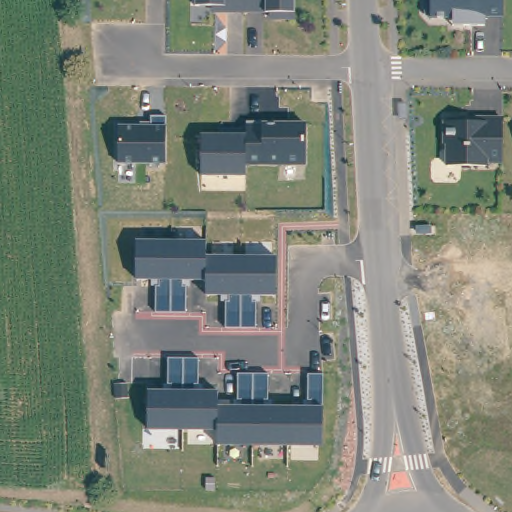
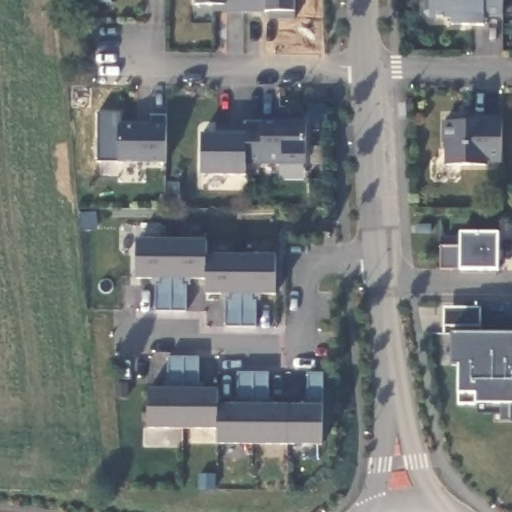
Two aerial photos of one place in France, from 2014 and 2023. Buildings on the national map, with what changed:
unchanged [(244,12),(244,6),(195,5),(195,0),(245,0),(245,12),(244,12)]
unchanged [(295,0),(295,20),(277,19),(277,13),(245,12),(245,0),(295,0)]
unchanged [(430,18),(425,13),(425,0),(503,0),(503,17),(485,17),(485,26),(462,26),(452,26),(452,18),(430,18)]
unchanged [(152,125),(152,116),(169,118),(169,163),(121,163),(120,125),(152,125)]
unchanged [(502,162),(487,162),(486,166),(447,165),(447,144),(445,144),(445,121),(469,122),(469,119),(502,119),(502,162)]
unchanged [(308,123),(308,167),(248,167),(250,124),(308,123)]
unchanged [(236,134),(236,129),(247,129),(247,176),(202,175),(202,134),(236,134)]
new [(499,270),(462,269),(441,269),(442,247),(460,247),(460,233),(498,233),(499,270)]
unchanged [(207,240),(206,255),(206,279),(186,280),(186,313),(156,313),(157,280),(137,279),(138,240),(207,240)]
unchanged [(276,258),(275,295),(259,295),(258,328),(224,328),(225,295),(206,294),(206,279),(206,255),(276,258)]
new [(512,406),(512,423),(502,423),(502,416),(476,415),(480,404),(476,404),(460,404),(460,394),(460,366),(452,366),(451,334),(479,335),(512,335),(512,406)]
unchanged [(200,358),(201,391),(219,391),(219,407),(218,429),(149,429),(148,389),(169,389),(169,357),(200,358)]
unchanged [(238,407),(238,374),(271,374),(269,404),(307,405),(307,374),(327,374),(324,444),(220,444),(218,429),(219,407),(238,407)]

